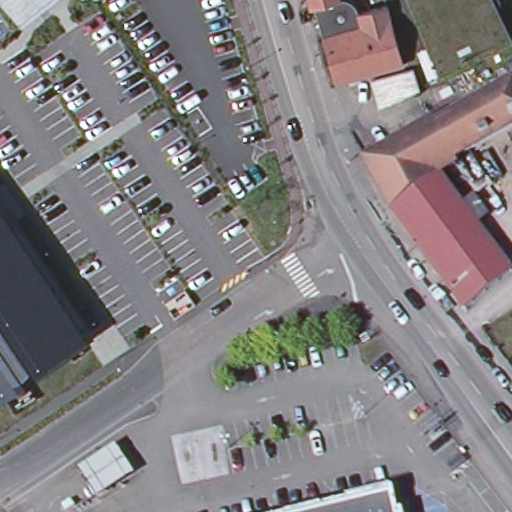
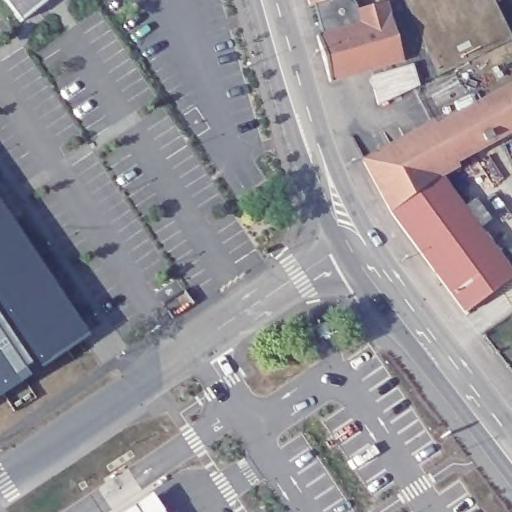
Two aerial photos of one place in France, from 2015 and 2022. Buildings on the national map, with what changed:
unchanged [(16,21),(13,17),(0,0),(43,0),(16,21)]
unchanged [(311,2),(310,0),(318,0),(311,2)]
unchanged [(385,1),(388,0),(389,0),(405,59),(331,80),(312,12),(357,0),(385,0),(385,1)]
unchanged [(422,84),(381,102),(372,75),(416,63),(422,84)]
unchanged [(512,126),(452,159),(433,122),(512,80),(512,126)]
unchanged [(433,122),(452,159),(454,162),(439,172),(409,131),(431,118),(433,122)]
unchanged [(409,131),(439,172),(435,174),(387,211),(383,206),(360,158),(409,131)]
unchanged [(461,208),(475,199),(486,214),(473,224),(511,275),(463,311),(387,211),(435,174),(445,188),(461,208)]
unchanged [(83,337),(0,393),(0,212),(83,337)]
unchanged [(323,322),(326,334),(314,337),(311,324),(323,322)]
unchanged [(78,465),(115,441),(135,470),(97,495),(78,465)]
demolished [(398,512),(302,512),(393,490),(398,512)]

